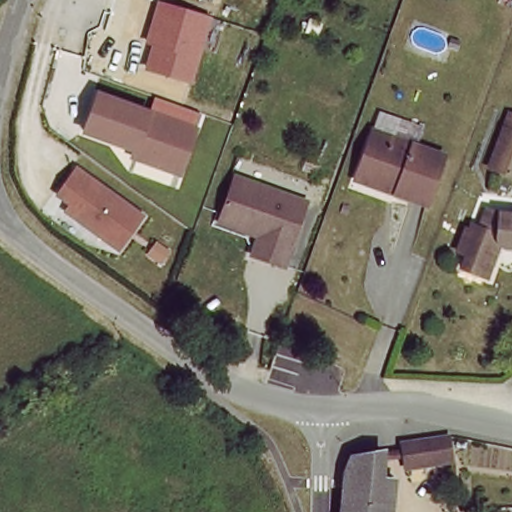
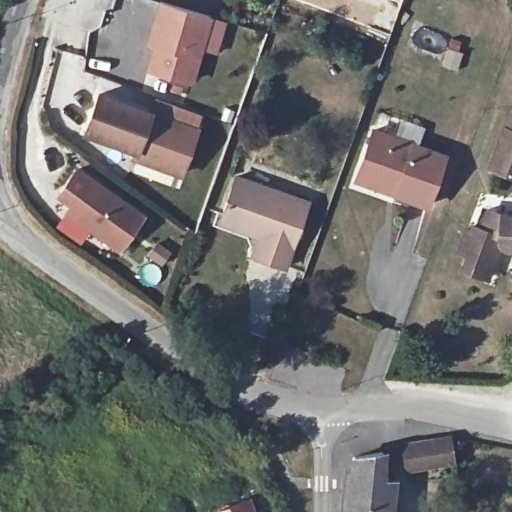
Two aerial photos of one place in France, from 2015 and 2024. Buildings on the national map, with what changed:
unchanged [(145,71),(152,46),(147,44),(159,1),(213,18),(193,84),(145,71)]
unchanged [(201,121),(184,175),(128,158),(132,146),(80,129),(95,86),(201,121)]
unchanged [(155,98),(202,114),(201,121),(152,106),(155,98)]
unchanged [(492,182),(512,127),(512,189),(492,182)]
unchanged [(359,174),(373,134),(447,161),(429,210),(396,198),(355,183),(359,174)]
unchanged [(148,217),(119,254),(65,214),(69,207),(55,195),(78,167),(148,217)]
unchanged [(312,200),(291,266),(247,253),(255,232),(219,219),(233,173),(312,200)]
unchanged [(510,257),(505,256),(502,253),(489,287),(464,278),(470,264),(460,261),(469,238),(472,240),(474,235),(482,238),(489,218),(502,223),(512,224),(512,256),(510,257)]
unchanged [(403,475),(398,449),(426,445),(445,444),(449,468),(403,475)]
unchanged [(342,498),(344,483),(350,464),(379,459),(376,482),(382,483),(381,497),(386,499),(384,512),(340,512),(342,498)]
new [(251,496),(256,512),(207,512),(251,496)]

